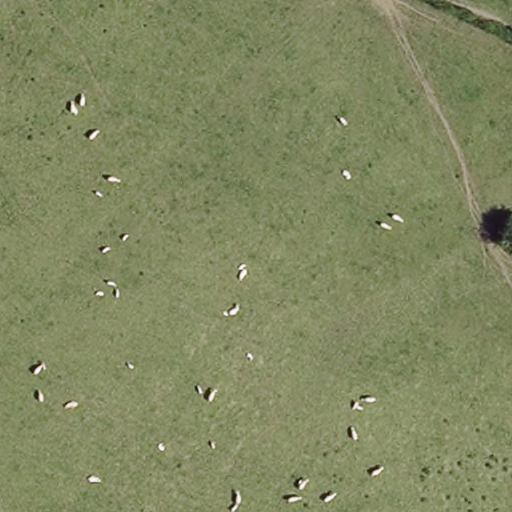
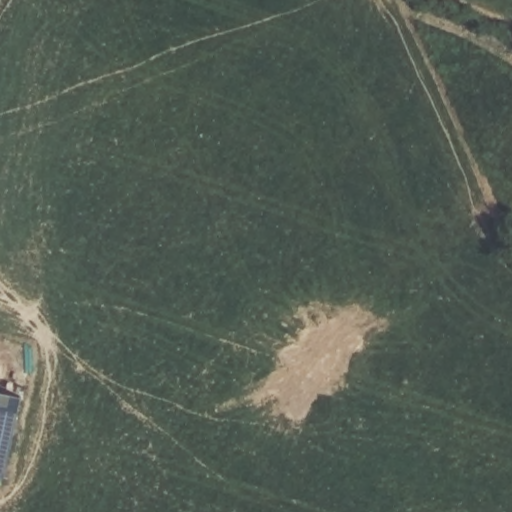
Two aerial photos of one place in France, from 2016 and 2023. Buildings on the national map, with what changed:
new [(26,397),(8,479),(0,477),(0,391),(26,397)]

